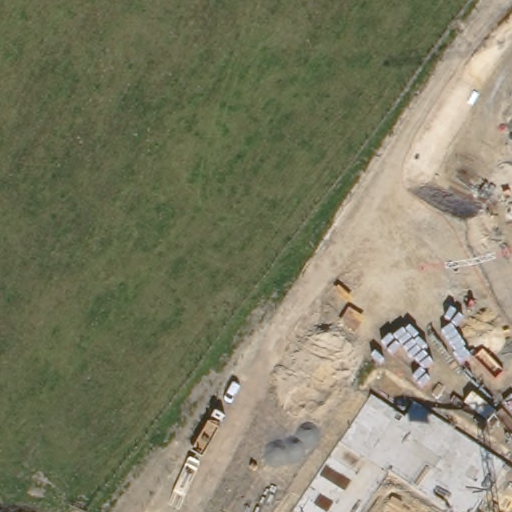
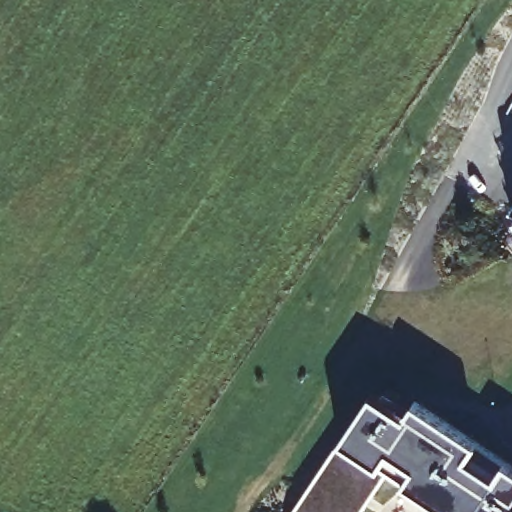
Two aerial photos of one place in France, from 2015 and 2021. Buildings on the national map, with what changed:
new [(511,214),(512,212),(512,214),(511,214)]
new [(448,512),(448,511),(408,483),(417,469),(391,452),(381,465),(356,512),(297,512),(293,510),(343,438),(372,391),(405,415),(415,399),(475,440),(466,456),(497,477),(507,461),(512,464),(512,512),(448,512)]

